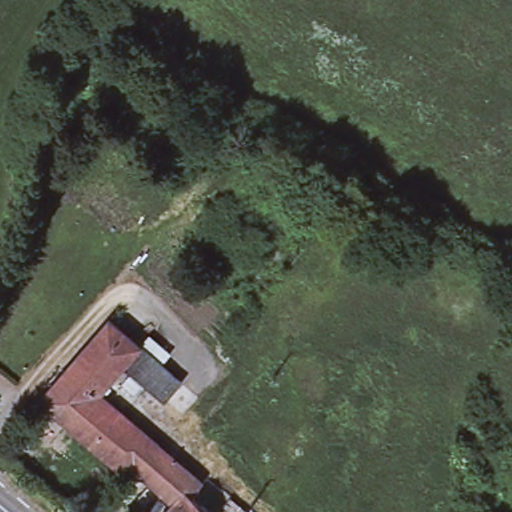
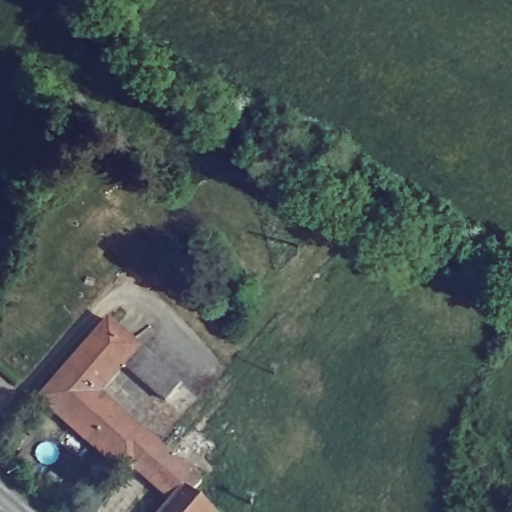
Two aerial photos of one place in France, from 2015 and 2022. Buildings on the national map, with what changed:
unchanged [(388,147),(375,170),(321,143),(334,119),(388,147)]
unchanged [(180,382),(164,399),(122,364),(98,393),(154,441),(200,479),(188,493),(182,487),(171,501),(133,468),(126,476),(38,400),(48,388),(106,320),(180,382)]
unchanged [(182,487),(188,493),(211,512),(161,512),(171,501),(182,487)]

